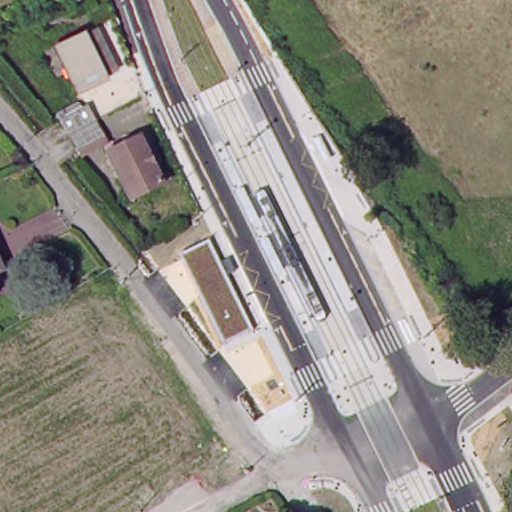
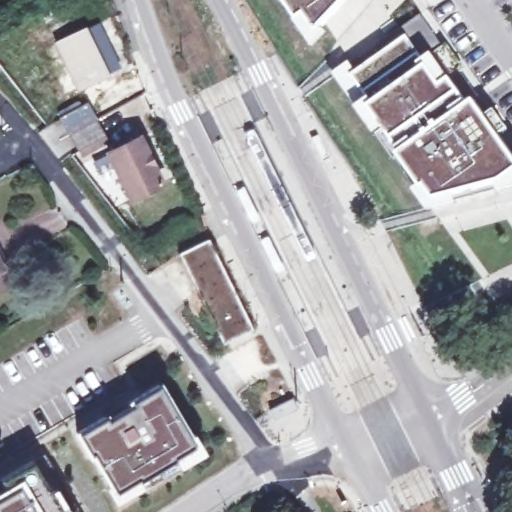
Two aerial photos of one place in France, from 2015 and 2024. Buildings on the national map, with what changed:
new [(303,13),(295,18),(282,0),(344,0),(315,30),(303,13)]
unchanged [(58,5),(62,15),(50,21),(46,12),(58,5)]
new [(464,69),(450,79),(440,85),(426,67),(406,37),(350,76),(343,66),(420,15),(441,46),(446,43),(464,69)]
unchanged [(53,49),(80,35),(92,29),(113,72),(100,79),(75,92),(53,49)]
new [(501,181),(435,198),(426,185),(420,188),(400,156),(390,138),(369,106),(350,76),(406,37),(426,67),(440,85),(450,79),(469,106),(474,102),(479,99),(512,146),(512,173),(501,181)]
unchanged [(82,154),(75,140),(67,123),(92,108),(101,125),(108,140),(82,154)]
unchanged [(143,142),(166,188),(136,203),(113,157),(143,142)]
unchanged [(180,256),(207,241),(250,330),(223,344),(180,256)]
unchanged [(0,276),(0,257),(7,272),(0,276)]
unchanged [(460,330),(448,338),(440,324),(452,316),(460,330)]
new [(88,455),(75,432),(102,417),(105,420),(132,404),(130,401),(157,386),(193,446),(172,458),(173,459),(136,481),(135,479),(112,492),(90,454),(88,455)]
new [(78,512),(60,512),(30,463),(42,454),(78,512)]
new [(0,480),(0,479),(30,463),(60,512),(0,512),(0,487),(2,485),(0,480)]

